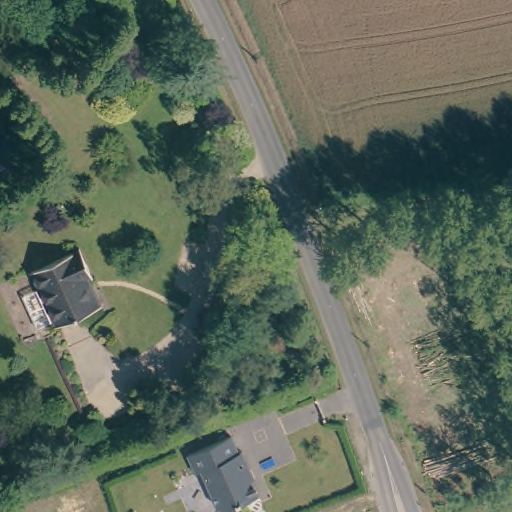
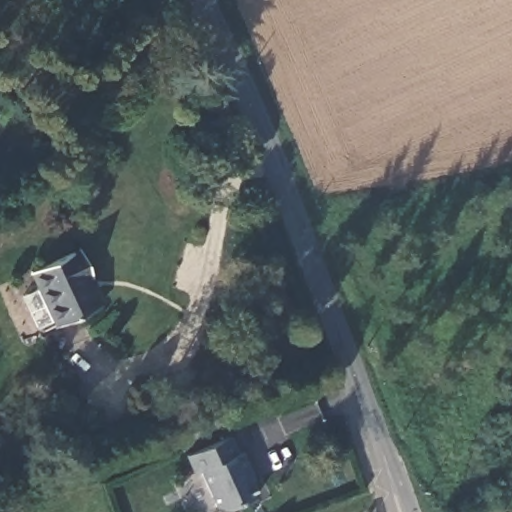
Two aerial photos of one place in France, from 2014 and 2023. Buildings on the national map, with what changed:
unchanged [(28,295),(44,288),(36,271),(85,249),(97,275),(92,277),(105,306),(61,326),(58,320),(43,327),(28,295)]
unchanged [(195,473),(187,455),(231,436),(238,453),(242,452),(250,471),(248,472),(258,496),(225,510),(216,507),(201,471),(195,473)]

